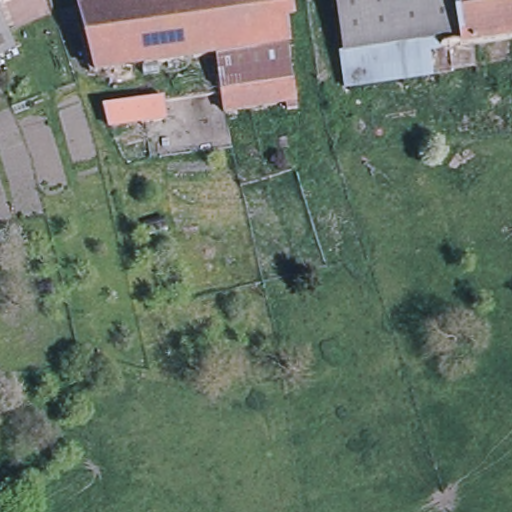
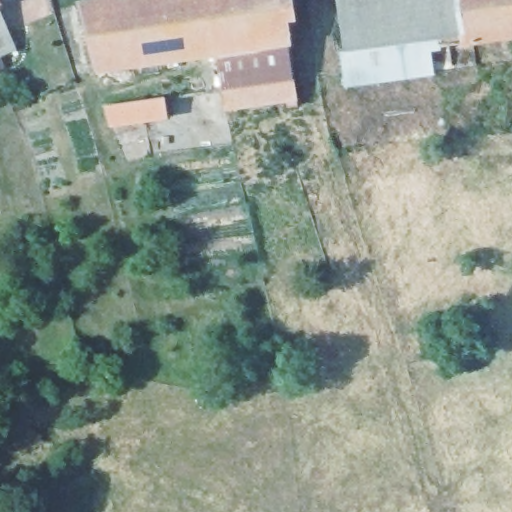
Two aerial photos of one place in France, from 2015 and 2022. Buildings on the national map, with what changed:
unchanged [(217,54),(96,72),(77,5),(108,0),(284,0),(291,43),(217,54)]
unchanged [(343,44),(338,0),(433,0),(438,31),(343,44)]
unchanged [(438,31),(433,0),(512,0),(512,21),(469,27),(472,48),(448,52),(346,66),(343,44),(438,31)]
unchanged [(12,49),(0,53),(0,21),(12,49)]
unchanged [(291,43),(296,77),(222,89),(217,54),(291,43)]
unchanged [(296,77),(299,97),(225,107),(222,89),(296,77)]
unchanged [(165,102),(168,121),(110,129),(105,111),(165,102)]

